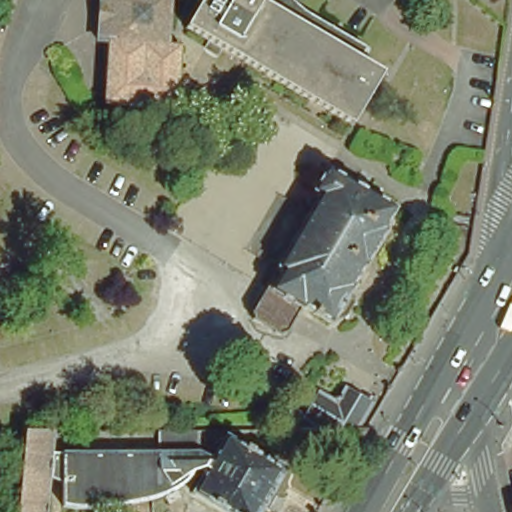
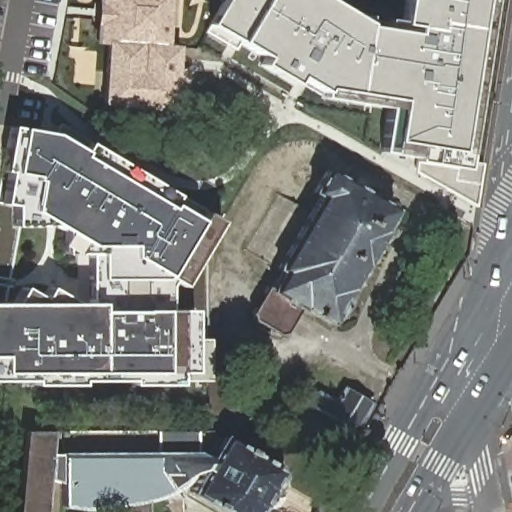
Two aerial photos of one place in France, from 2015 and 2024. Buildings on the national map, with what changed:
unchanged [(162,58),(176,59),(172,115),(105,111),(109,49),(98,48),(100,0),(165,0),(162,58)]
demolished [(386,71),(353,128),(185,33),(203,0),(262,0),(386,71)]
new [(369,19),(401,26),(404,0),(504,0),(482,162),(465,159),(464,167),(383,150),(388,104),(321,98),(207,23),(221,0),(331,0),(369,19)]
new [(60,123),(221,222),(181,285),(173,281),(171,287),(171,311),(194,311),(195,382),(180,381),(180,386),(131,385),(131,381),(82,381),(82,385),(34,385),(34,381),(0,381),(0,185),(2,170),(0,170),(0,147),(4,123),(54,134),(60,123)]
unchanged [(270,293),(271,291),(281,273),(276,269),(317,196),(311,192),(324,170),(392,209),(382,228),(383,229),(362,266),(361,265),(350,285),(346,295),(350,297),(351,304),(342,318),(335,320),(332,319),(328,325),(301,308),(300,312),(270,293)]
unchanged [(286,334),(278,337),(252,321),(252,313),(266,288),(271,291),(270,293),(300,312),(286,334)]
unchanged [(347,446),(332,436),(338,425),(312,425),(297,417),(313,388),(331,397),(338,383),(367,399),(352,425),(355,425),(359,426),(347,446)]
unchanged [(22,434),(24,434),(52,436),(51,457),(62,458),(62,436),(142,436),(192,436),(204,436),(211,436),(202,454),(214,461),(225,441),(284,475),(263,512),(217,512),(192,497),(207,472),(202,471),(197,477),(191,482),(186,487),(179,492),(172,496),(162,500),(153,503),(142,507),(132,509),(124,510),(116,512),(61,512),(61,490),(49,487),(47,512),(16,512),(21,459),(22,434)]

